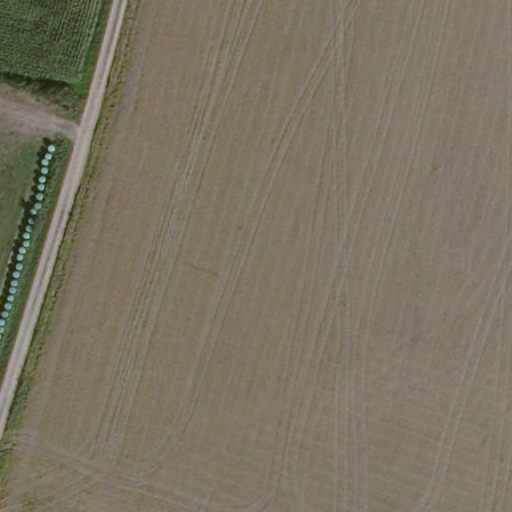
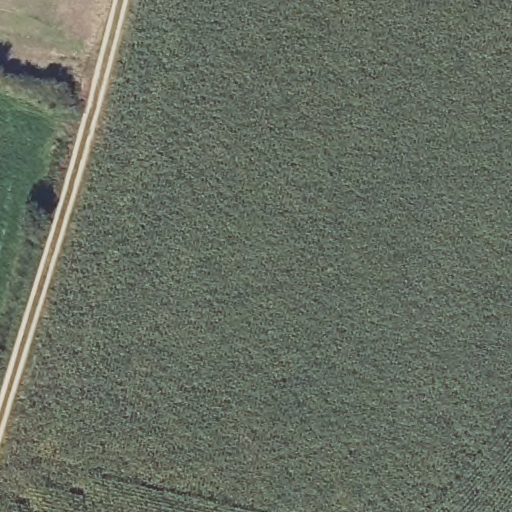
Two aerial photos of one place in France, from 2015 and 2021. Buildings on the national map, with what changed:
[]

